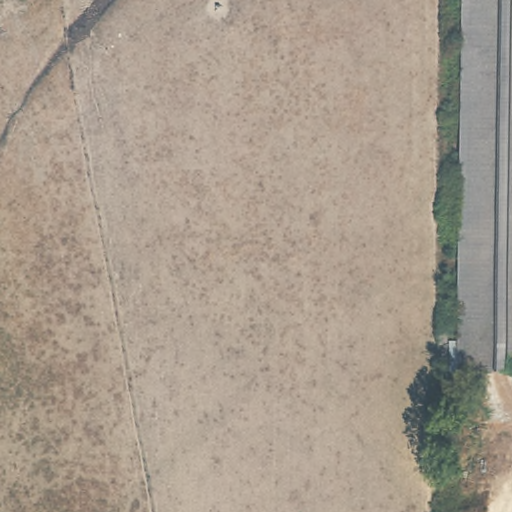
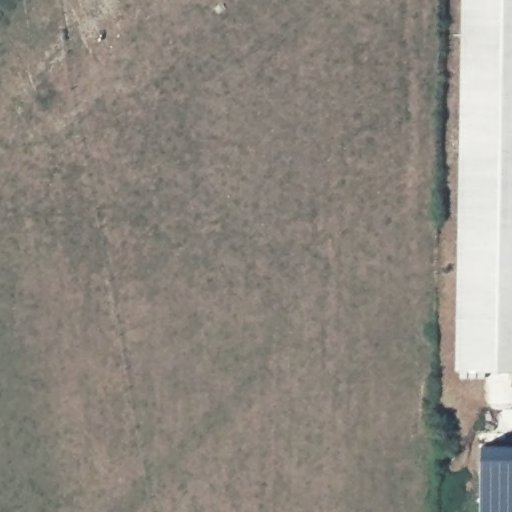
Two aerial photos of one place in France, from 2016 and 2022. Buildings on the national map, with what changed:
unchanged [(456,372),(460,0),(512,0),(512,373),(456,372)]
new [(480,512),(482,445),(512,446),(512,512),(480,512)]

